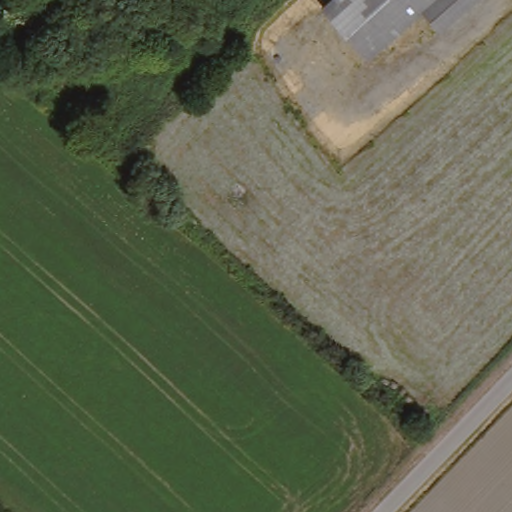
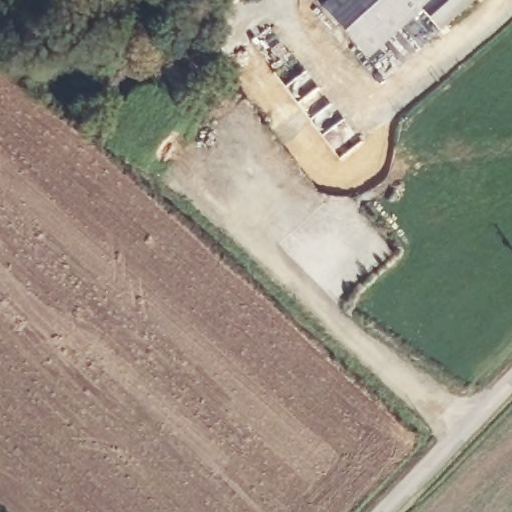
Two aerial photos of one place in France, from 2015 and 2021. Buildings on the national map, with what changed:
unchanged [(332,0),(473,0),(432,38),(414,16),(362,63),(317,14),(332,0)]

